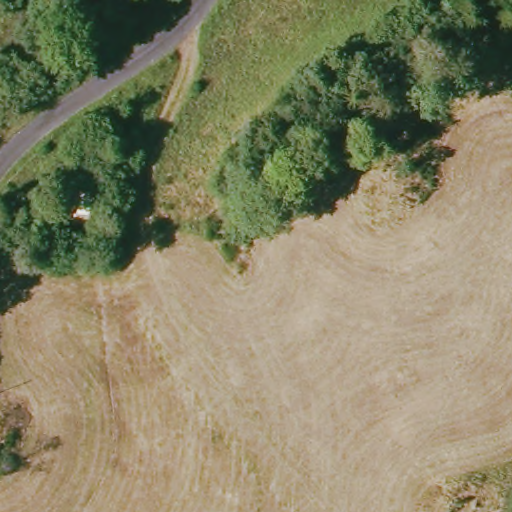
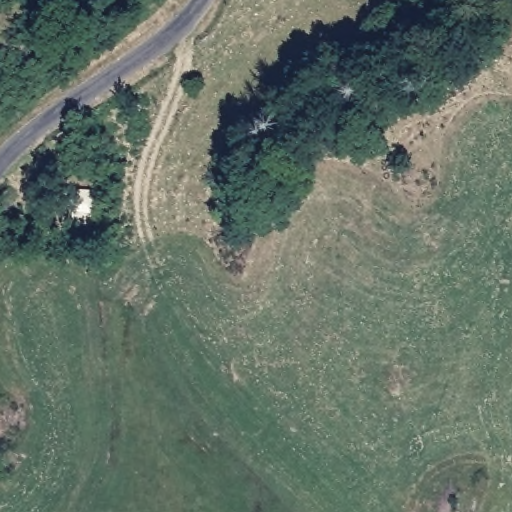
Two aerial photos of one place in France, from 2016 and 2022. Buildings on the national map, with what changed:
unchanged [(114,185),(116,209),(96,208),(96,185),(114,185)]

